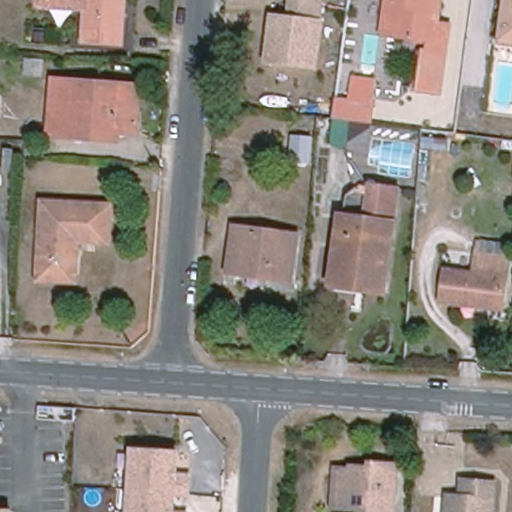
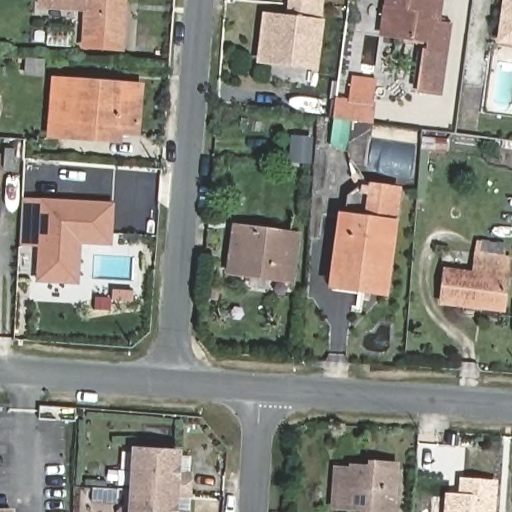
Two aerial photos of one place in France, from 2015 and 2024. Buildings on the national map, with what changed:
unchanged [(85,44),(87,9),(41,6),(41,0),(126,0),(123,46),(85,44)]
unchanged [(443,21),(433,88),(417,86),(423,45),(426,46),(428,37),(380,30),(385,0),(434,0),(431,20),(443,21)]
unchanged [(507,0),(512,0),(512,42),(501,40),(507,0)]
unchanged [(329,12),(327,28),(311,27),(308,68),(276,64),(280,23),(295,24),(297,9),(329,12)]
unchanged [(27,74),(27,61),(44,62),(43,76),(27,74)]
unchanged [(357,147),(330,143),(333,119),(336,101),(350,103),(353,81),(377,84),(372,124),(370,136),(357,147)]
unchanged [(140,88),(137,129),(53,122),(56,82),(140,88)]
unchanged [(315,159),(307,158),(305,167),(291,165),(294,137),(316,140),(322,140),(320,160),(315,159)]
unchanged [(386,290),(332,283),(342,210),(368,214),(372,181),(400,185),(386,290)]
unchanged [(113,205),(110,244),(80,243),(78,283),(39,281),(43,202),(113,205)]
unchanged [(298,236),(292,282),(229,273),(236,228),(298,236)]
unchanged [(446,270),(474,274),(477,257),(510,262),(503,311),(442,303),(446,270)]
unchanged [(134,447),(184,450),(180,512),(130,512),(134,447)]
unchanged [(392,512),(369,512),(369,509),(336,507),(339,471),(370,473),(370,465),(395,467),(392,512)]
unchanged [(453,497),(466,498),(467,482),(499,485),(497,512),(452,512),(453,497)]
unchanged [(14,507),(15,512),(0,512),(0,507),(14,507)]

